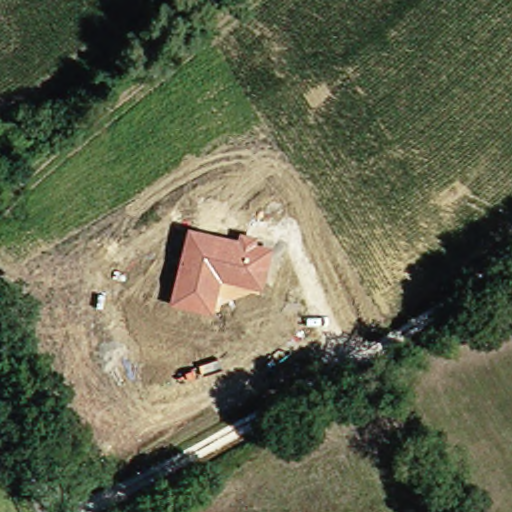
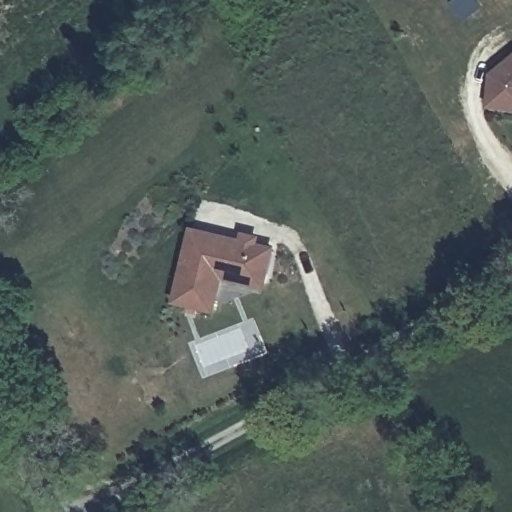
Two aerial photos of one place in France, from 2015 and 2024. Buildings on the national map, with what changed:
new [(485,109),(488,75),(512,55),(512,112),(485,109)]
unchanged [(239,237),(240,231),(260,235),(258,243),(275,245),(265,289),(224,279),(215,313),(171,302),(190,225),(239,237)]

